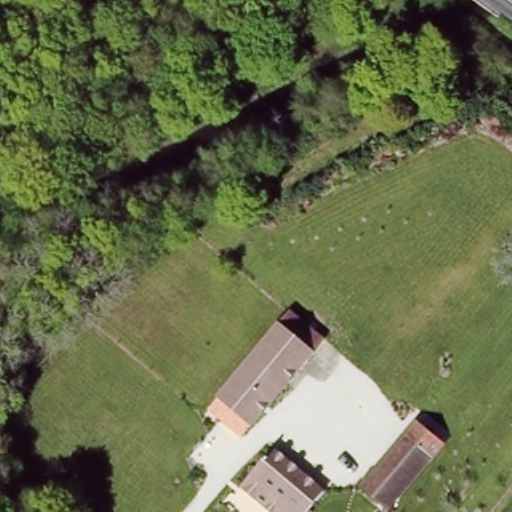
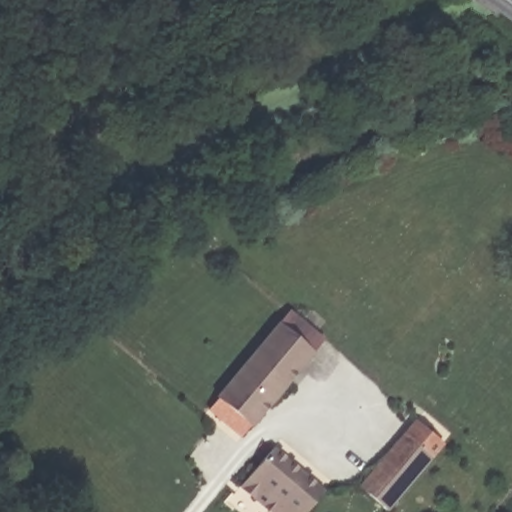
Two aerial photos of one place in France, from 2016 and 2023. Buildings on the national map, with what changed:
unchanged [(289,310),(325,339),(244,437),(209,408),(289,310)]
unchanged [(444,447),(389,512),(383,512),(358,490),(414,422),(444,447)]
unchanged [(309,512),(284,512),(244,479),(271,447),(326,492),(309,512)]

